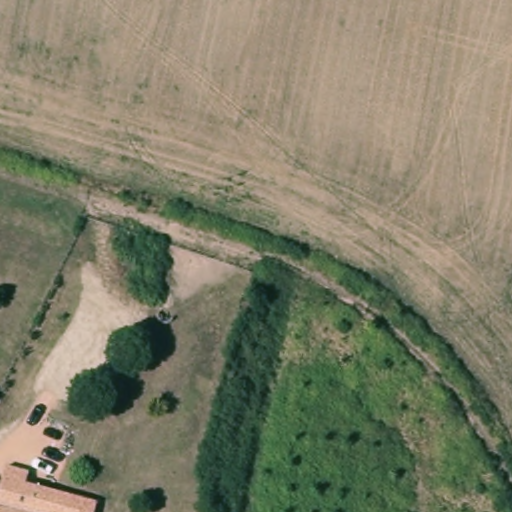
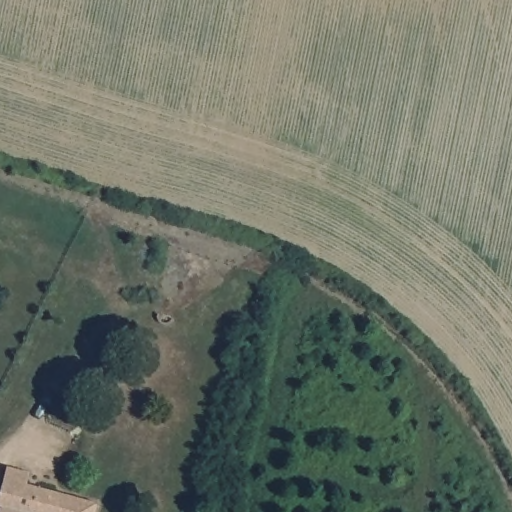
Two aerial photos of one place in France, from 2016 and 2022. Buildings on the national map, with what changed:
unchanged [(19,481),(101,504),(99,512),(42,512),(38,511),(38,512),(28,512),(12,507),(19,481)]
unchanged [(42,512),(38,512),(38,511),(42,512)]

